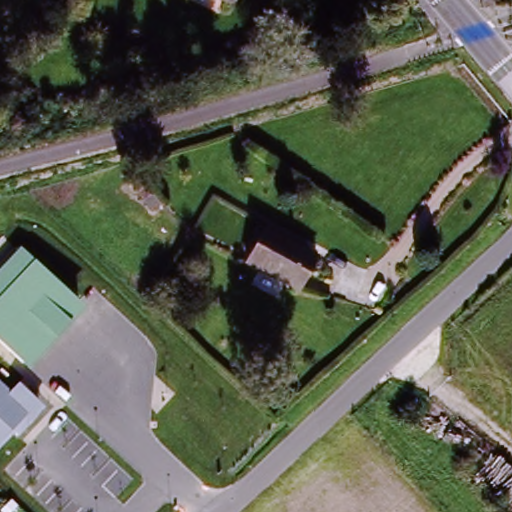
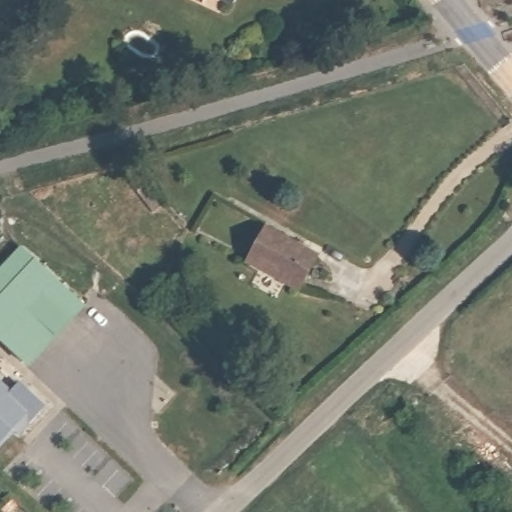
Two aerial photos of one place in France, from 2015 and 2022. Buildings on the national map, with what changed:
unchanged [(65,10),(55,0),(71,0),(65,10)]
unchanged [(225,4),(216,0),(226,0),(225,4)]
unchanged [(246,268),(262,236),(315,262),(300,295),(246,268)]
unchanged [(30,370),(0,343),(0,269),(20,248),(86,310),(30,370)]
unchanged [(19,385),(46,409),(19,438),(15,433),(0,450),(0,382),(11,392),(19,385)]

